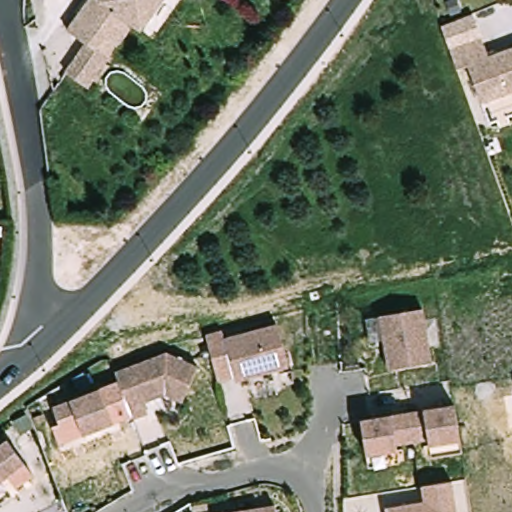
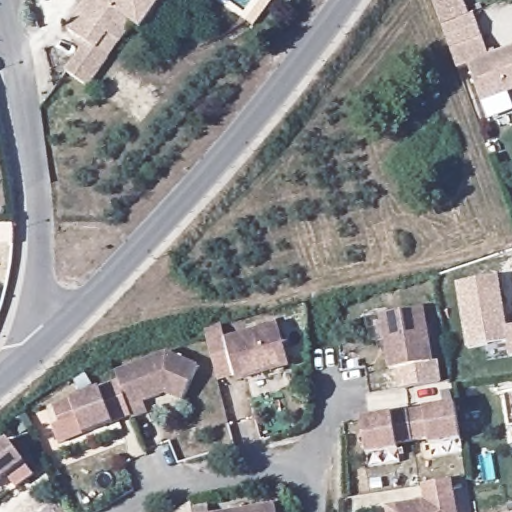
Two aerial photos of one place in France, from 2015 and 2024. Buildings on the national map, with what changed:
unchanged [(72,71),(92,43),(73,30),(94,0),(166,0),(146,28),(138,22),(124,41),(113,58),(93,86),(72,71)]
new [(467,43),(453,48),(455,54),(460,67),(456,68),(441,27),(472,15),(481,38),(467,43)]
unchanged [(485,37),(492,55),(512,48),(512,90),(487,99),(484,100),(471,63),(460,67),(455,54),(453,48),(467,43),(485,37)]
new [(456,284),(497,277),(507,327),(512,327),(512,358),(509,358),(506,343),(467,349),(456,284)]
unchanged [(422,306),(432,360),(389,367),(380,313),(422,306)]
unchanged [(213,344),(210,334),(228,329),(230,337),(283,322),(294,363),(241,378),(239,372),(222,376),(213,344)]
unchanged [(161,350),(192,364),(177,399),(160,391),(138,399),(142,410),(127,416),(115,383),(109,369),(161,350)]
unchanged [(95,387),(109,422),(80,434),(73,418),(56,425),(48,407),(95,387)]
unchanged [(408,410),(455,402),(461,438),(430,443),(429,437),(413,439),(408,410)]
unchanged [(397,442),(398,448),(367,453),(362,417),(408,410),(413,439),(397,442)]
unchanged [(2,436),(20,459),(17,460),(0,473),(0,438),(2,436)]
unchanged [(383,512),(382,508),(421,501),(418,485),(448,481),(454,512),(383,512)]
unchanged [(276,512),(225,512),(275,504),(276,512)]

